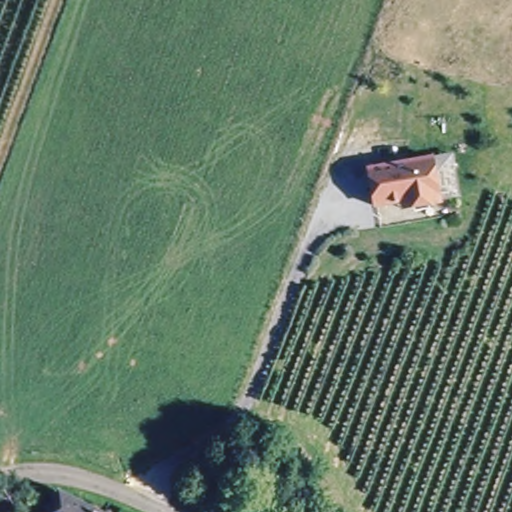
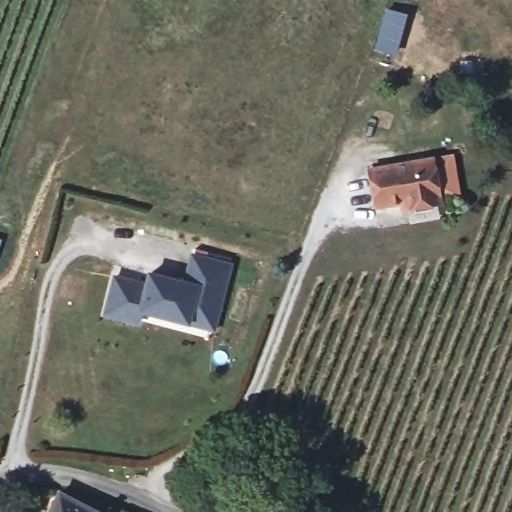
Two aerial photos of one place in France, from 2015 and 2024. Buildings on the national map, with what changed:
new [(408,12),(397,55),(373,50),(384,7),(408,12)]
unchanged [(405,200),(378,204),(372,166),(436,156),(444,200),(421,204),(405,207),(405,200)]
new [(2,237),(0,243),(0,237),(2,237)]
new [(182,316),(135,304),(132,316),(99,307),(109,270),(141,278),(144,267),(180,276),(187,249),(224,259),(212,305),(207,323),(182,316)]
unchanged [(34,511),(47,487),(98,509),(103,512),(36,512),(34,511)]

